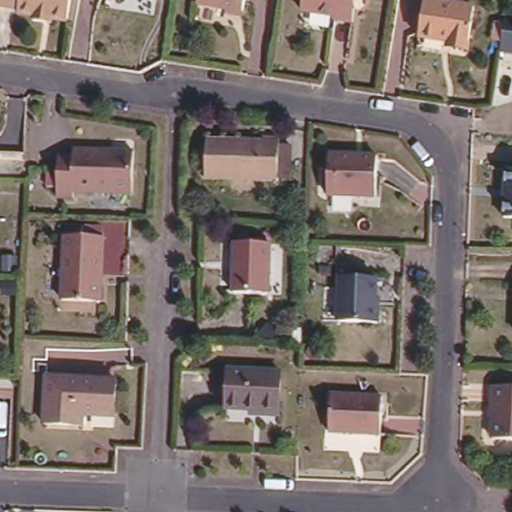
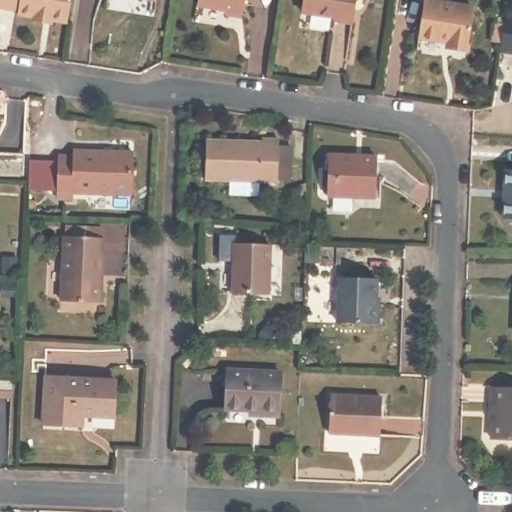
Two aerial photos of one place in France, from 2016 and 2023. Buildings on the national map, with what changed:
unchanged [(34,8),(18,6),(18,4),(15,4),(15,1),(12,0),(66,0),(63,16),(34,12),(34,8)]
unchanged [(240,6),(201,0),(241,0),(240,6)]
unchanged [(351,19),(331,15),(332,10),(300,5),(301,0),(353,0),(351,19)]
unchanged [(472,4),(465,42),(445,41),(445,36),(416,33),(421,0),(446,0),(472,4)]
unchanged [(512,15),(512,50),(503,48),(508,14),(512,15)]
unchanged [(290,174),(277,173),(204,171),(206,137),(257,139),(257,133),(279,134),(278,141),(291,142),(290,174)]
unchanged [(9,149),(11,135),(35,136),(35,150),(9,149)]
unchanged [(133,192),(73,191),(73,197),(58,196),(61,152),(74,154),(75,146),(135,151),(133,192)]
unchanged [(377,152),(376,196),(327,194),(329,151),(377,152)]
unchanged [(512,168),(512,215),(505,215),(508,168),(512,168)]
unchanged [(101,239),(98,302),(60,302),(65,237),(101,239)]
unchanged [(269,244),(269,292),(233,290),(235,242),(269,244)]
unchanged [(375,275),(374,292),(378,292),(378,319),(336,319),(336,272),(375,275)]
unchanged [(276,410),(254,409),(255,403),(227,402),(229,367),(277,368),(276,410)]
unchanged [(115,375),(113,406),(86,405),(85,416),(43,413),(46,371),(115,375)]
unchanged [(512,384),(512,434),(489,433),(490,383),(512,384)]
unchanged [(6,397),(0,396),(0,387),(5,387),(6,397)]
unchanged [(382,392),(379,430),(331,427),(334,390),(382,392)]

